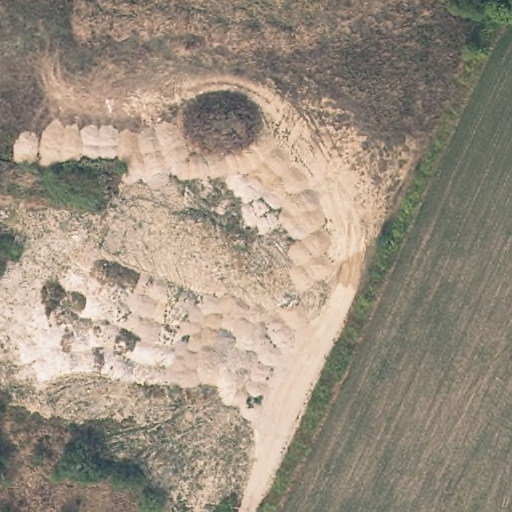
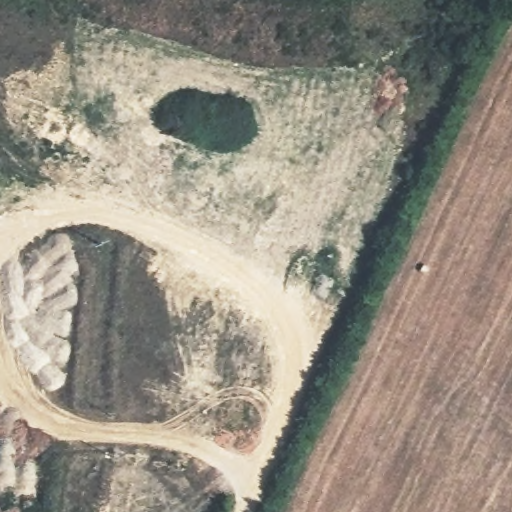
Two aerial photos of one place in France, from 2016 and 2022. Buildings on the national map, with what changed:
[]

